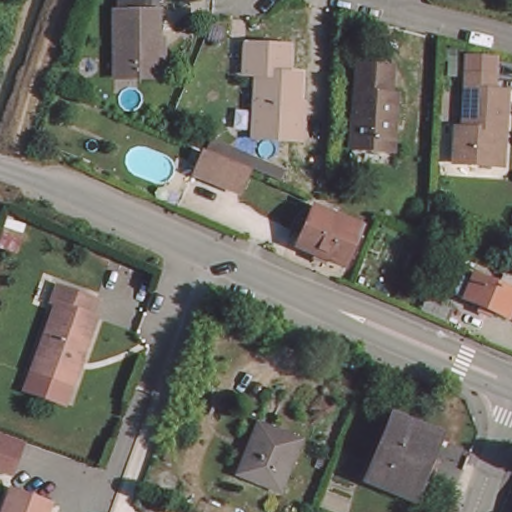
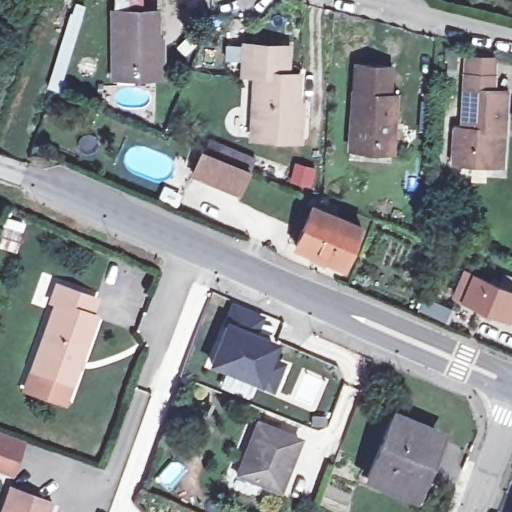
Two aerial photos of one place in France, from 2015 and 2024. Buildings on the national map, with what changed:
unchanged [(167,80),(140,81),(112,82),(111,10),(159,10),(160,38),(167,38),(167,80)]
unchanged [(307,141),(297,141),(252,140),(253,75),(240,75),(242,42),(291,44),(290,71),(298,71),(297,101),(307,102),(307,141)]
unchanged [(495,170),(451,167),(454,128),(463,128),(467,76),(467,60),(495,62),(494,78),(493,91),(511,92),(509,121),(506,171),(495,170)]
unchanged [(404,94),(400,157),(355,154),(360,67),(398,69),(397,94),(404,94)]
unchanged [(196,181),(207,156),(212,145),(252,162),(249,172),(237,198),(196,181)]
unchanged [(315,206),(365,229),(346,269),(297,247),(315,206)]
unchanged [(512,282),(512,312),(475,297),(461,291),(470,271),(484,276),(486,271),(512,282)]
unchanged [(95,313),(67,380),(30,364),(57,297),(50,294),(56,280),(95,297),(90,311),(95,313)]
new [(272,393),(257,387),(205,366),(224,321),(278,343),(272,359),(284,363),(272,393)]
unchanged [(302,432),(281,488),(238,472),(258,417),(302,432)]
unchanged [(411,494),(371,480),(394,418),(442,436),(427,478),(419,475),(411,494)]
unchanged [(15,474),(0,468),(0,434),(27,445),(15,474)]
unchanged [(49,501),(44,512),(0,512),(0,509),(10,485),(49,501)]

